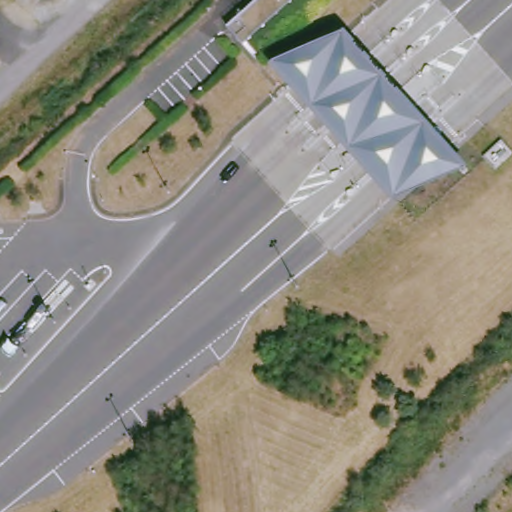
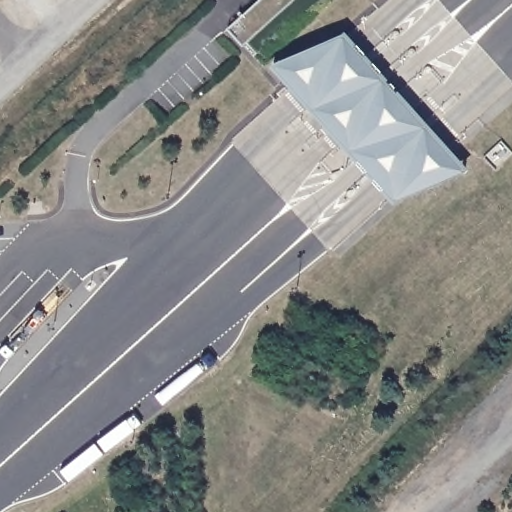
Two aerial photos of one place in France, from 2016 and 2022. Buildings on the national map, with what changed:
unchanged [(256,0),(296,0),(244,47),(224,27),(256,0)]
unchanged [(344,33),(468,169),(397,203),(269,62),(344,33)]

